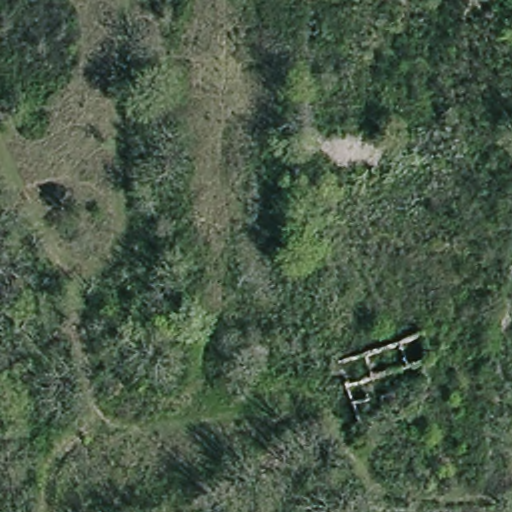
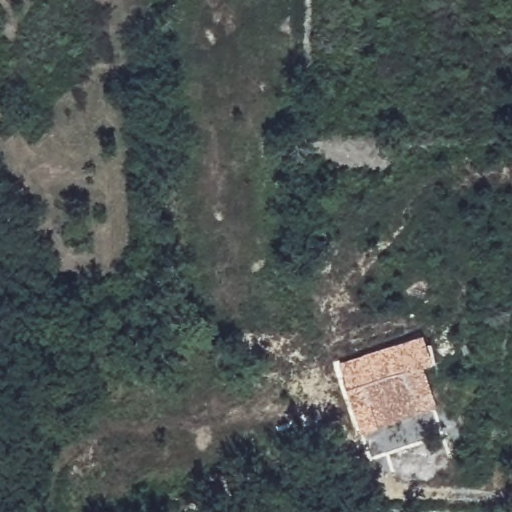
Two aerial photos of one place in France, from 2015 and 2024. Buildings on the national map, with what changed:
new [(342,364),(424,337),(433,363),(424,366),(438,406),(361,432),(342,364)]

